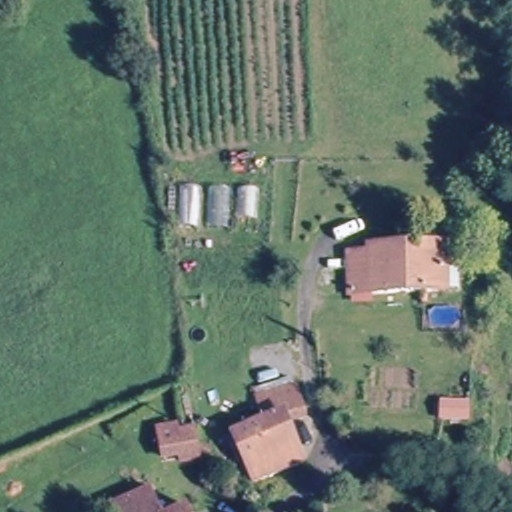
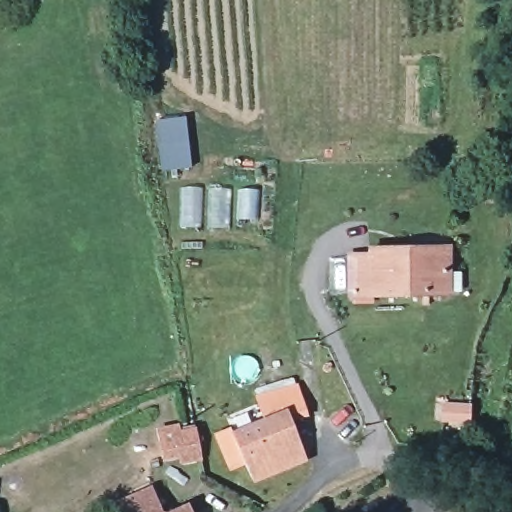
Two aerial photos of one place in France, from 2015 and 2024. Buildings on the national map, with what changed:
new [(193,167),(164,173),(155,122),(184,116),(193,167)]
unchanged [(352,260),(370,259),(370,250),(443,249),(443,292),(352,294),(352,260)]
unchanged [(299,382),(310,413),(301,416),(315,452),(248,477),(230,428),(277,411),(270,392),(299,382)]
unchanged [(182,458),(180,451),(162,453),(157,427),(192,421),(198,454),(182,458)]
unchanged [(474,428),(472,450),(434,450),(433,431),(474,428)]
unchanged [(118,501),(151,488),(159,512),(122,512),(118,501)]
unchanged [(184,505),(187,512),(164,512),(184,505)]

